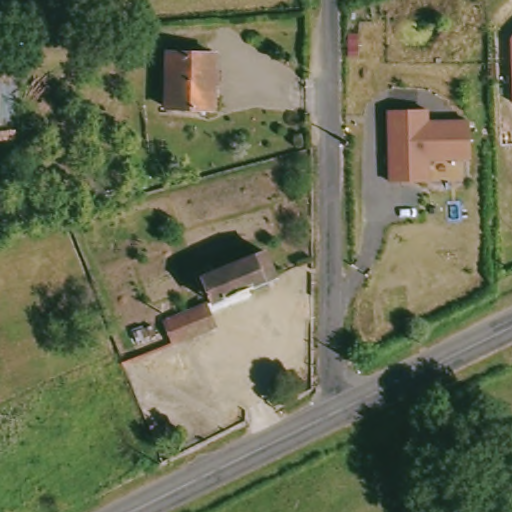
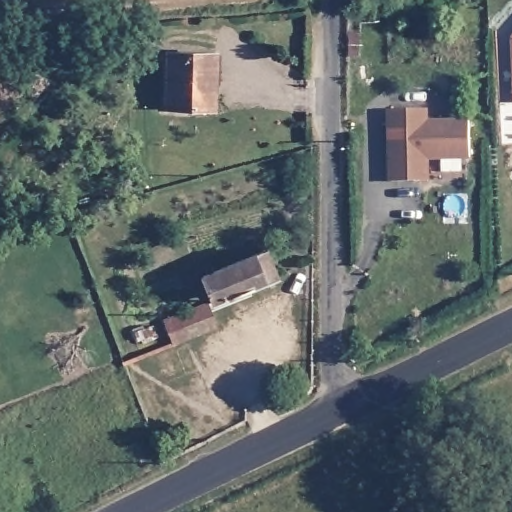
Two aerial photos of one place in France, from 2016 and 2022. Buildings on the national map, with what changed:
unchanged [(509,37),(512,34),(512,102),(509,37)]
unchanged [(164,50),(213,52),(211,105),(162,104),(164,50)]
unchanged [(388,110),(425,110),(424,127),(434,127),(434,123),(467,124),(468,159),(424,159),(424,181),(388,181),(388,110)]
unchanged [(196,270),(260,246),(270,273),(206,299),(196,270)]
unchanged [(299,321),(300,300),(309,300),(308,322),(299,321)]
unchanged [(156,318),(201,301),(209,324),(168,338),(164,340),(156,318)]

